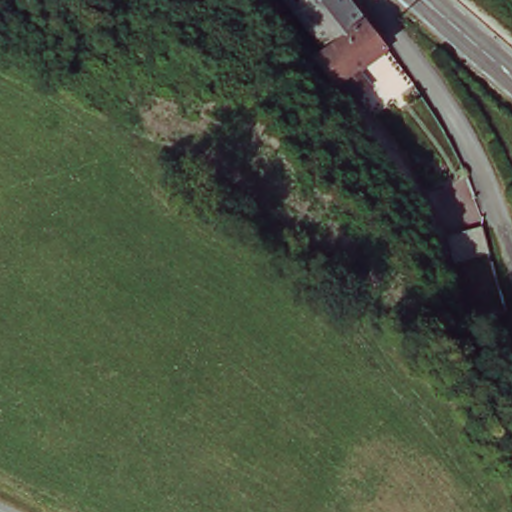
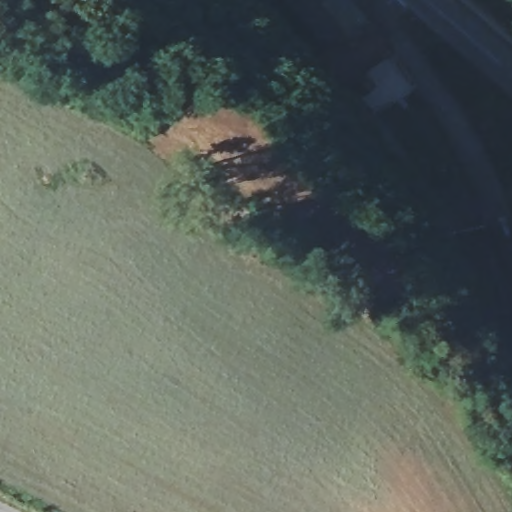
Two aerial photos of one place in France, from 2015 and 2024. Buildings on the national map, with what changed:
unchanged [(349,0),(360,16),(318,49),(284,0),(349,0)]
unchanged [(355,102),(341,81),(318,49),(360,16),(385,50),(358,70),(372,89),(355,102)]
unchanged [(492,260),(465,273),(450,244),(480,229),(492,260)]

